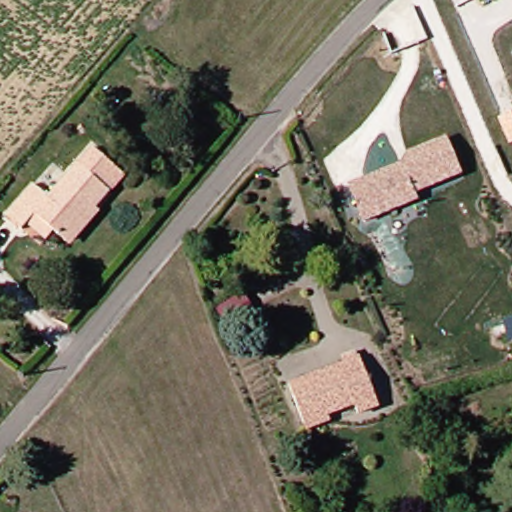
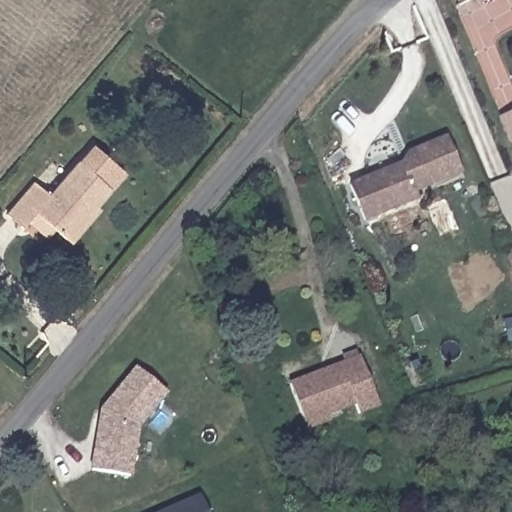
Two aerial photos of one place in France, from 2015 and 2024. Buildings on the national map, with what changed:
new [(512,113),(512,138),(503,117),(512,113)]
unchanged [(396,162),(400,154),(447,134),(462,175),(421,192),(418,198),(365,223),(347,183),(396,162)]
unchanged [(29,225),(24,229),(9,215),(37,184),(51,195),(96,148),(127,175),(65,243),(52,230),(44,238),(29,225)]
unchanged [(230,335),(219,321),(241,304),(253,318),(230,335)]
unchanged [(309,434),(306,428),(290,389),(358,359),(379,407),(355,417),(350,409),(328,419),(331,426),(309,434)]
new [(105,407),(140,365),(170,390),(141,424),(133,474),(95,467),(103,418),(105,407)]
new [(202,494),(210,512),(161,512),(202,494)]

